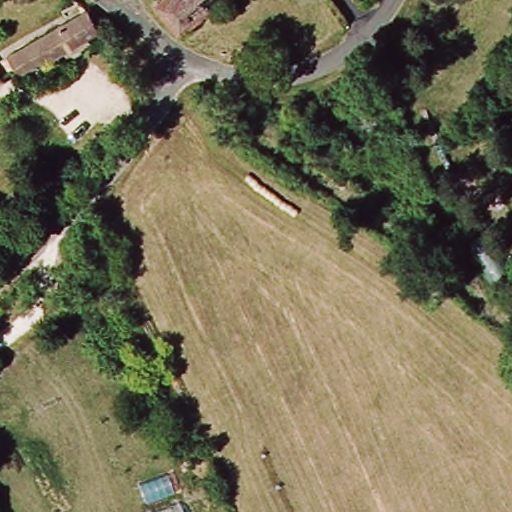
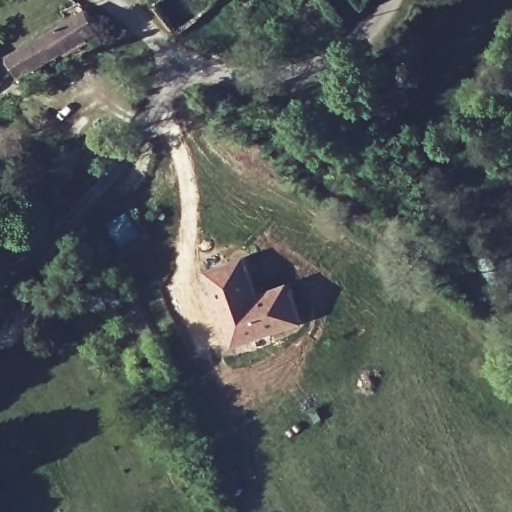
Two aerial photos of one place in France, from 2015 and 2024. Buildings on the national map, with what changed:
demolished [(177,34),(158,1),(159,0),(221,0),(177,34)]
unchanged [(82,11),(94,31),(22,82),(10,64),(82,11)]
unchanged [(0,93),(0,79),(7,87),(0,93)]
new [(206,272),(242,261),(258,302),(288,292),(300,322),(232,345),(206,272)]

